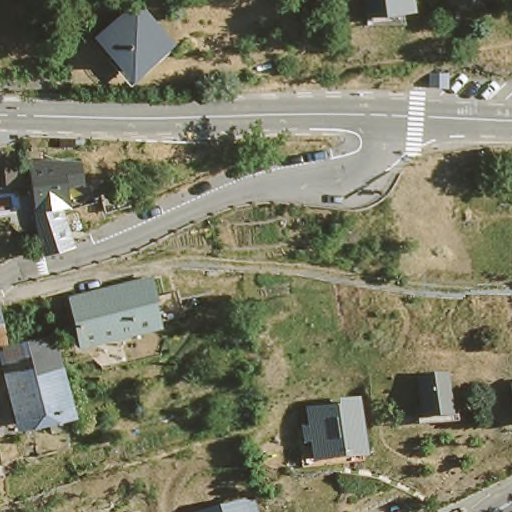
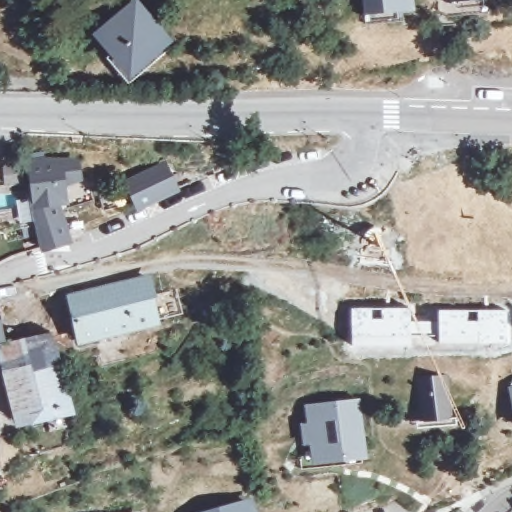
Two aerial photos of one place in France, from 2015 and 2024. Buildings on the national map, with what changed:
unchanged [(405,8),(367,11),(366,0),(405,0),(405,8)]
unchanged [(101,39),(130,4),(170,36),(156,53),(151,49),(136,67),(101,39)]
unchanged [(75,164),(77,182),(62,187),(63,205),(50,206),(52,225),(65,224),(66,241),(40,245),(31,165),(75,164)]
new [(163,166),(175,191),(139,208),(127,184),(163,166)]
unchanged [(0,234),(7,232),(12,255),(0,258),(0,234)]
unchanged [(146,293),(166,288),(173,313),(68,339),(60,297),(137,278),(140,288),(145,286),(146,293)]
new [(410,306),(410,344),(351,344),(350,307),(410,306)]
new [(437,309),(507,309),(508,342),(436,343),(437,309)]
unchanged [(5,343),(46,332),(65,408),(21,418),(12,420),(0,374),(0,356),(8,354),(5,343)]
unchanged [(420,383),(450,380),(453,418),(423,421),(420,383)]
unchanged [(512,386),(512,413),(508,387),(512,386)]
unchanged [(354,405),(361,455),(315,461),(308,411),(354,405)]
unchanged [(257,512),(201,512),(253,498),(257,512)]

